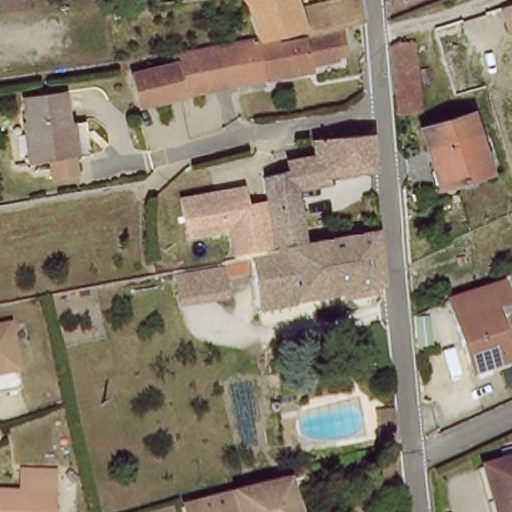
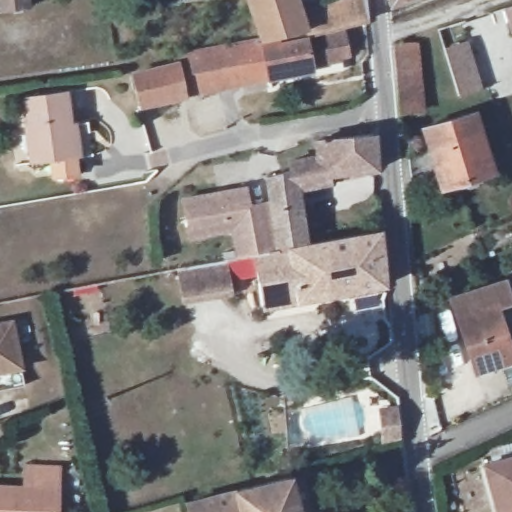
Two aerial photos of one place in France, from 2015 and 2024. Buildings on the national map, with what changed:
unchanged [(0,12),(0,0),(34,0),(35,8),(0,12)]
unchanged [(250,0),(298,0),(301,7),(344,0),(370,0),(372,19),(368,20),(320,30),(312,32),(295,36),(285,37),(262,41),(259,41),(246,1),(250,0)]
unchanged [(395,0),(401,0),(395,2),(395,0)]
unchanged [(503,10),(512,8),(512,32),(509,33),(503,10)]
unchanged [(262,41),(285,37),(287,42),(345,32),(349,54),(314,60),(316,71),(293,74),(264,80),(141,107),(139,94),(137,77),(176,69),(174,54),(196,50),(200,50),(204,49),(252,42),(253,42),(259,41),(262,41)]
new [(482,90),(458,97),(444,47),(468,40),(482,90)]
unchanged [(403,116),(396,48),(421,45),(426,113),(403,116)]
unchanged [(50,174),(48,159),(28,162),(22,117),(26,116),(23,94),(61,90),(65,125),(83,123),(87,154),(69,156),(71,171),(50,174)]
unchanged [(475,113),(491,167),(442,184),(425,128),(475,113)]
unchanged [(266,205),(264,180),(293,172),(293,164),(318,160),(317,144),(374,136),(378,172),(334,178),(328,184),(326,185),(296,189),(302,249),(270,255),(265,208),(266,205)]
unchanged [(255,258),(223,264),(216,216),(264,208),(265,208),(270,255),(255,258)]
unchanged [(383,290),(275,307),(263,309),(255,258),(270,255),(302,249),(377,236),(383,290)]
unchanged [(501,278),(512,303),(512,307),(498,313),(512,352),(512,364),(478,377),(450,302),(448,296),(498,273),(501,278)]
unchanged [(4,323),(16,387),(0,390),(0,324),(4,323)]
unchanged [(402,418),(403,428),(382,433),(381,399),(399,398),(402,418)]
unchanged [(497,492),(490,493),(485,460),(512,453),(512,512),(501,512),(497,492)]
unchanged [(20,465),(64,471),(64,491),(18,490),(20,465)]
unchanged [(294,473),(303,512),(194,512),(192,499),(294,473)]
unchanged [(63,493),(62,512),(0,512),(0,490),(63,493)]
unchanged [(401,512),(389,512),(401,509),(401,512)]

